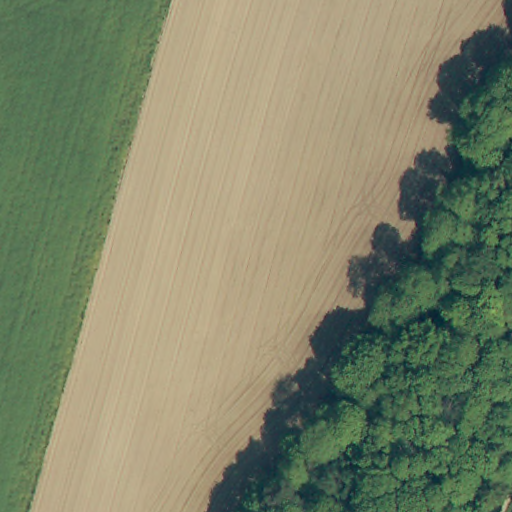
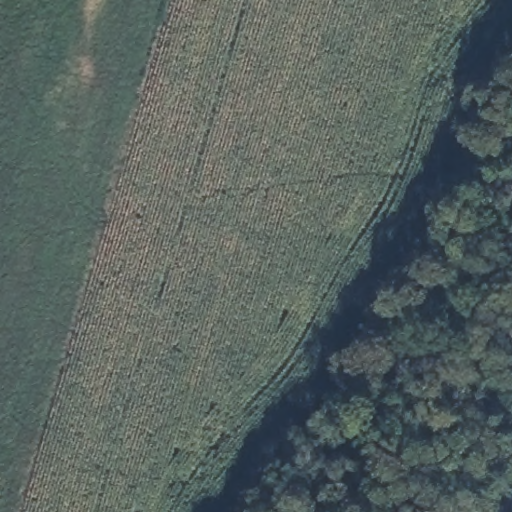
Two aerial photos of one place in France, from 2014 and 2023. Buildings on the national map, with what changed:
[]

